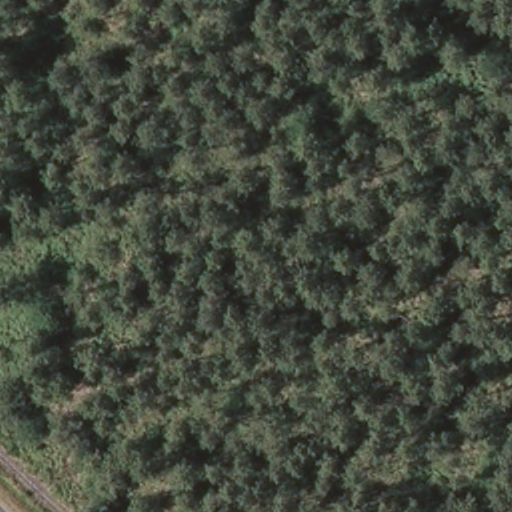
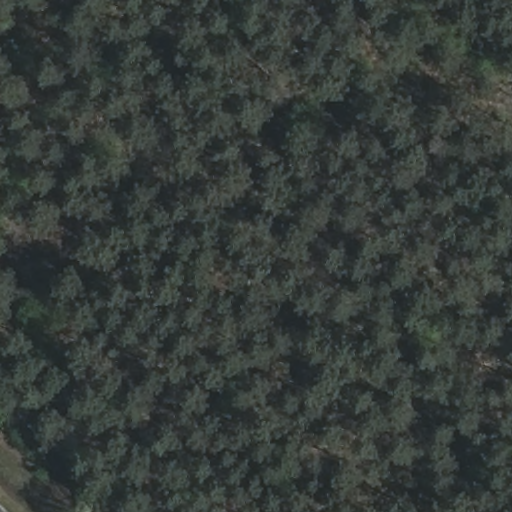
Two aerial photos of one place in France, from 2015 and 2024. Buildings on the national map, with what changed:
[]

